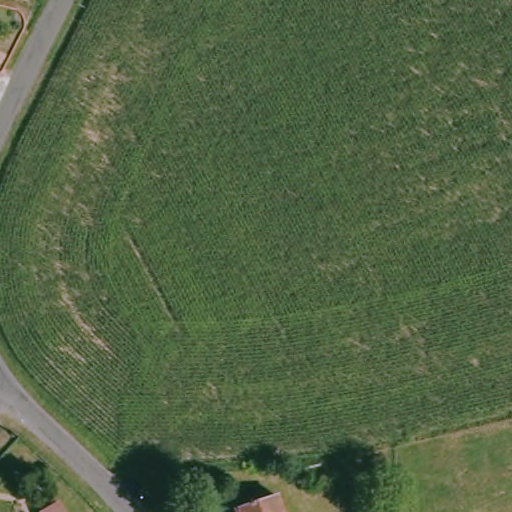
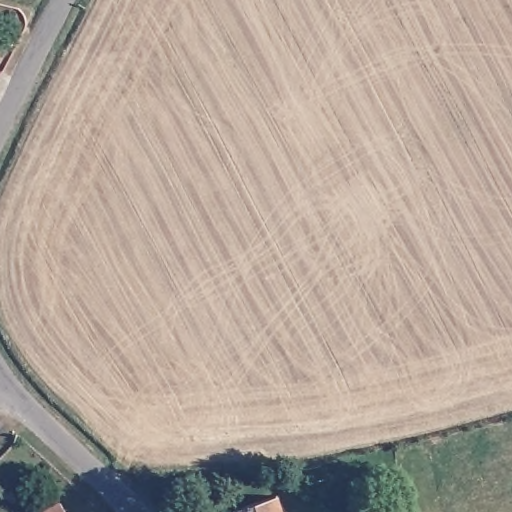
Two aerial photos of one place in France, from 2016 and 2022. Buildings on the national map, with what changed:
unchanged [(278,512),(234,512),(232,507),(272,494),(278,512)]
unchanged [(63,512),(41,512),(59,504),(63,512)]

